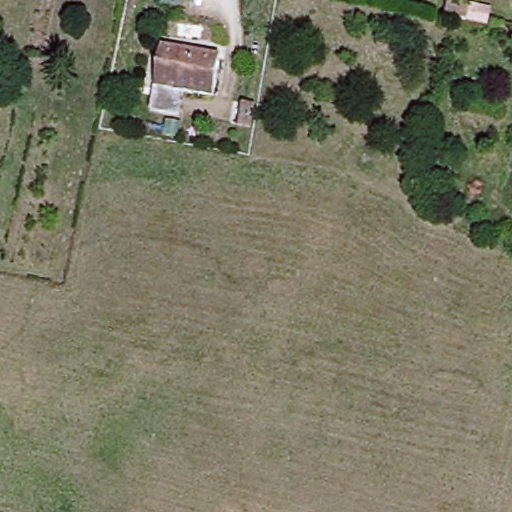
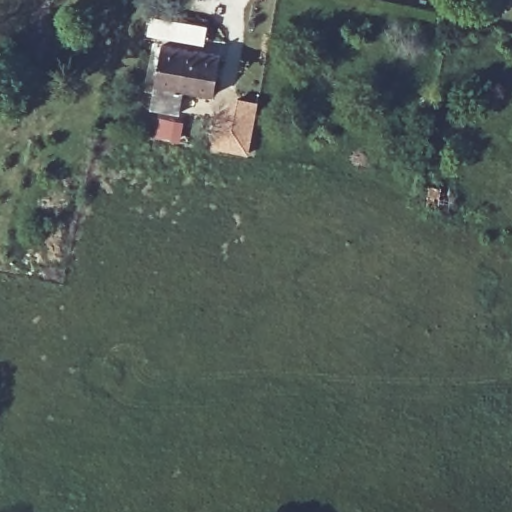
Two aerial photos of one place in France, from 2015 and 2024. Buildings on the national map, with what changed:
unchanged [(210,96),(182,91),(179,113),(148,108),(160,45),(217,54),(210,96)]
new [(237,98),(258,102),(256,122),(249,154),(210,146),(217,114),(237,98)]

